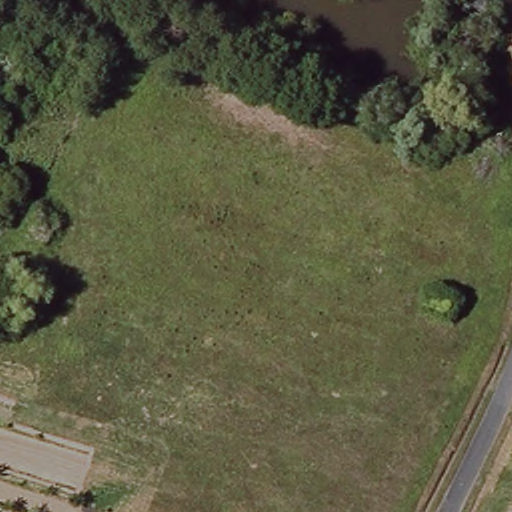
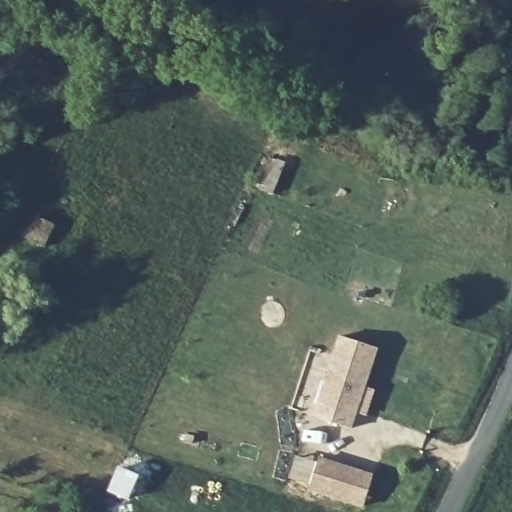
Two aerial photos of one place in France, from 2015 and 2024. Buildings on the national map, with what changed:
new [(378,350),(352,430),(310,417),(337,336),(378,350)]
new [(373,476),(365,505),(308,488),(317,458),(373,476)]

